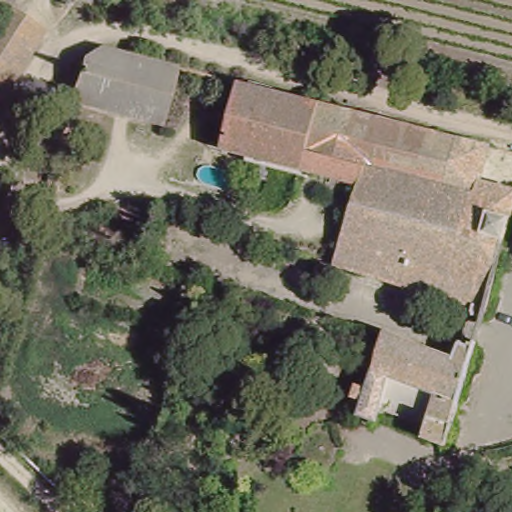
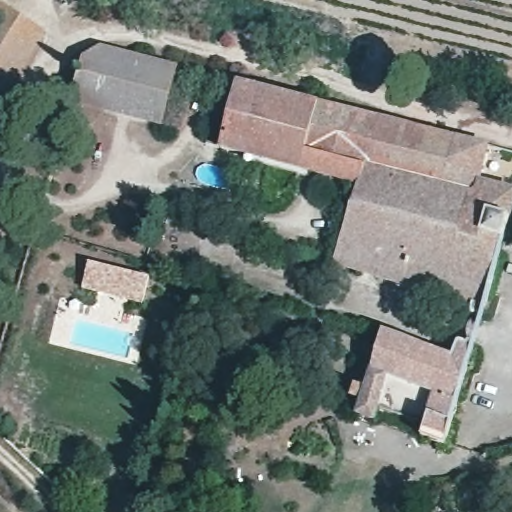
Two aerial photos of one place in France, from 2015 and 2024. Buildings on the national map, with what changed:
unchanged [(35,39),(12,79),(0,71),(0,15),(35,39)]
unchanged [(163,128),(72,102),(87,56),(99,47),(179,69),(163,128)]
unchanged [(12,79),(2,90),(0,90),(0,71),(12,79)]
unchanged [(355,182),(217,145),(235,78),(375,115),(355,182)]
unchanged [(472,315),(460,311),(461,302),(329,258),(355,182),(375,115),(482,144),(474,176),(508,188),(472,315)]
new [(83,289),(90,261),(150,277),(144,305),(83,289)]
unchanged [(458,340),(474,345),(445,445),(423,439),(425,425),(382,410),(377,421),(357,414),(383,334),(452,357),(458,340)]

